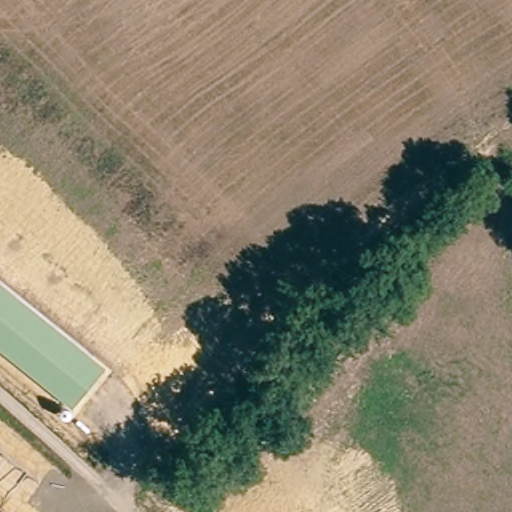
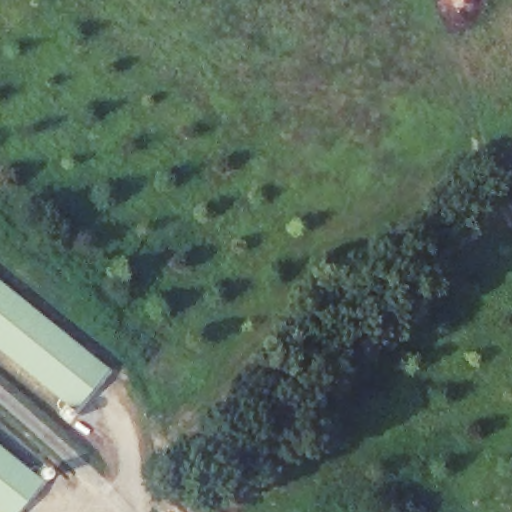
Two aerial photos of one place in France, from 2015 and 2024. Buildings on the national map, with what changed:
unchanged [(73,409),(0,351),(0,284),(105,368),(73,409)]
new [(43,466),(55,476),(46,486),(41,483),(19,512),(0,512),(0,448),(35,475),(43,466)]

